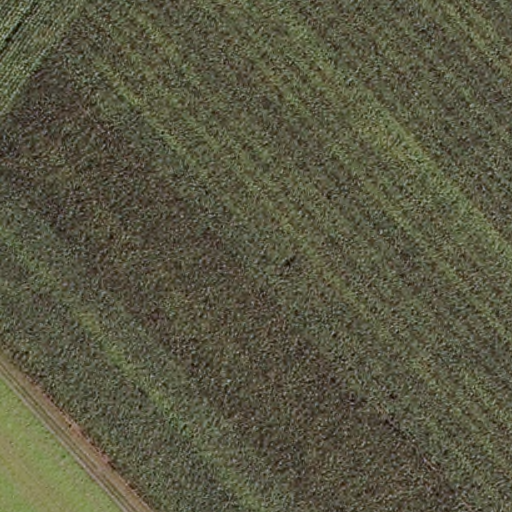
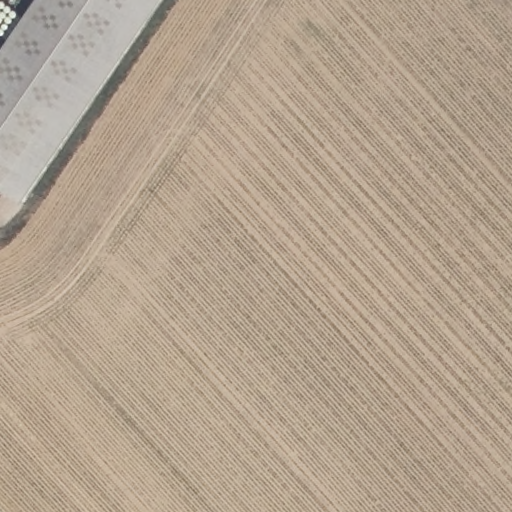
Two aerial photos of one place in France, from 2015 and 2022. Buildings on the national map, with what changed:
new [(20,202),(0,188),(0,50),(34,0),(159,0),(20,202)]

